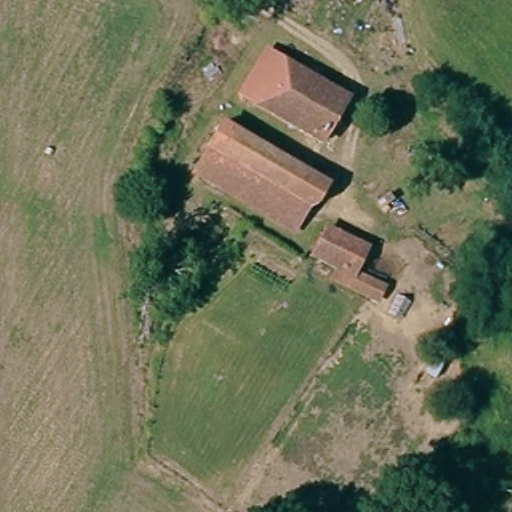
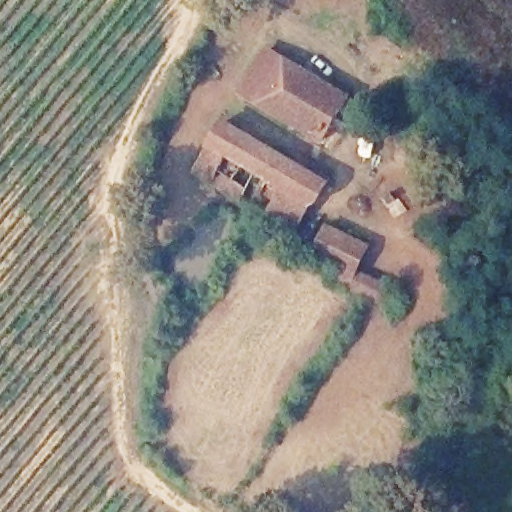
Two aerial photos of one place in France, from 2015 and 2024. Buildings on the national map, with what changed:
unchanged [(350,96),(324,141),(244,91),(271,46),(350,96)]
unchanged [(197,93),(206,100),(190,129),(180,121),(197,93)]
unchanged [(224,121),(330,186),(318,207),(313,203),(296,228),(197,166),(224,121)]
unchanged [(379,303),(352,288),(331,276),(337,265),(318,253),(332,227),(372,250),(360,273),(388,288),(379,303)]

